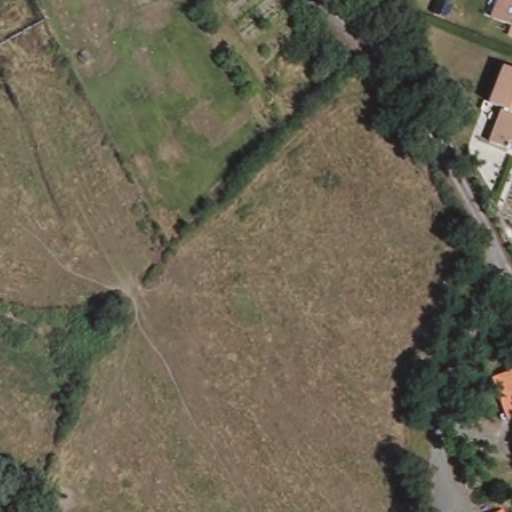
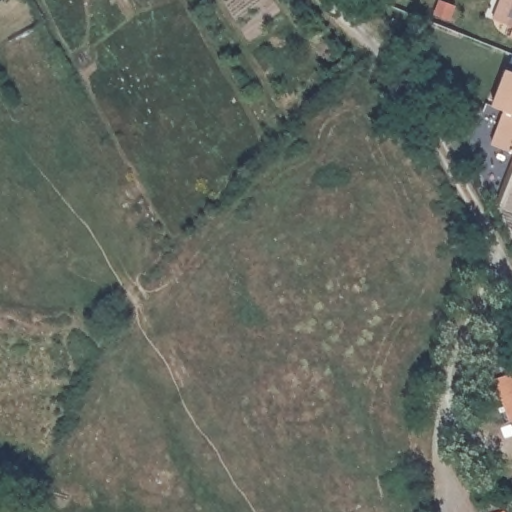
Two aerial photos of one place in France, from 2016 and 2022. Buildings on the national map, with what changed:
unchanged [(512,41),(490,32),(502,0),(512,0),(512,41)]
unchanged [(490,106),(505,69),(512,72),(512,155),(487,145),(501,111),(490,106)]
unchanged [(512,375),(512,420),(510,421),(489,381),(510,370),(512,375)]
unchanged [(498,512),(497,512),(497,511),(498,512)]

